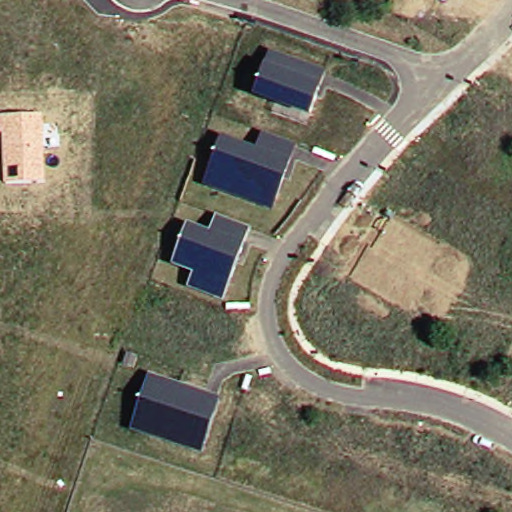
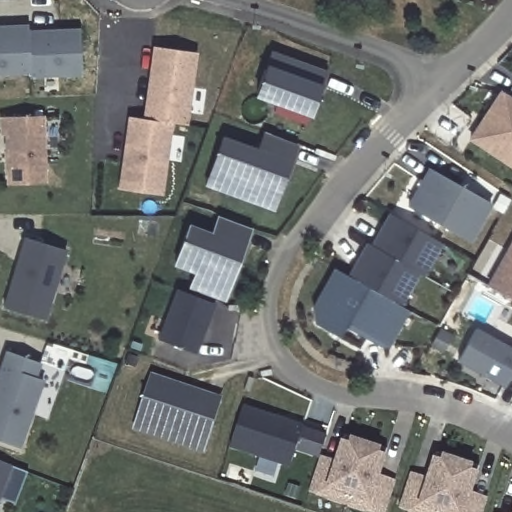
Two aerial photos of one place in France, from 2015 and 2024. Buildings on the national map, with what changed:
new [(28,33),(30,73),(0,74),(0,27),(28,27),(28,33)]
new [(59,31),(80,31),(81,75),(30,77),(30,73),(28,33),(44,32),(59,31)]
new [(129,117),(144,119),(149,86),(150,75),(154,47),(197,53),(186,125),(172,123),(161,195),(119,189),(123,162),(124,150),(129,117)]
unchanged [(269,53),(324,71),(310,115),(253,97),(269,53)]
new [(468,138),(501,89),(512,96),(512,168),(468,138)]
unchanged [(4,184),(2,135),(0,135),(0,117),(43,116),(45,183),(4,184)]
unchanged [(221,137),(255,148),(260,134),(296,144),(274,210),(204,185),(221,137)]
new [(431,166),(492,201),(470,240),(409,205),(431,166)]
unchanged [(402,307),(346,276),(367,242),(371,244),(389,213),(444,244),(426,277),(419,275),(402,307)]
unchanged [(193,274),(173,266),(189,225),(211,232),(217,216),(250,229),(224,300),(218,298),(188,288),(193,274)]
new [(16,271),(26,238),(68,251),(46,321),(4,309),(12,282),(16,271)]
new [(486,286),(512,241),(512,300),(486,286)]
unchanged [(389,345),(377,345),(346,327),(339,337),(318,325),(315,306),(335,269),(346,276),(402,307),(408,310),(389,345)]
new [(197,354),(159,339),(178,285),(188,288),(218,298),(197,354)]
unchanged [(510,379),(504,387),(458,361),(478,328),(512,346),(512,379),(510,379)]
new [(40,363),(35,377),(43,380),(19,448),(0,441),(0,369),(6,351),(40,363)]
unchanged [(151,376),(220,398),(203,455),(131,432),(151,376)]
new [(229,448),(242,408),(303,428),(290,468),(229,448)]
new [(295,452),(303,428),(327,436),(319,459),(295,452)]
new [(344,436),(387,450),(377,483),(394,489),(387,512),(368,512),(369,507),(327,493),(325,499),(308,492),(318,464),(334,469),(344,436)]
new [(408,480),(410,473),(428,478),(436,453),(479,467),(471,492),(489,499),(487,506),(484,512),(409,512),(399,509),(408,480)]
new [(336,462),(334,469),(318,464),(319,459),(320,457),(336,462)]
new [(28,474),(16,506),(0,500),(0,463),(11,468),(28,474)]
new [(377,483),(379,476),(397,482),(394,489),(377,483)]
new [(368,512),(345,505),(325,499),(327,493),(347,500),(369,507),(368,512)]

